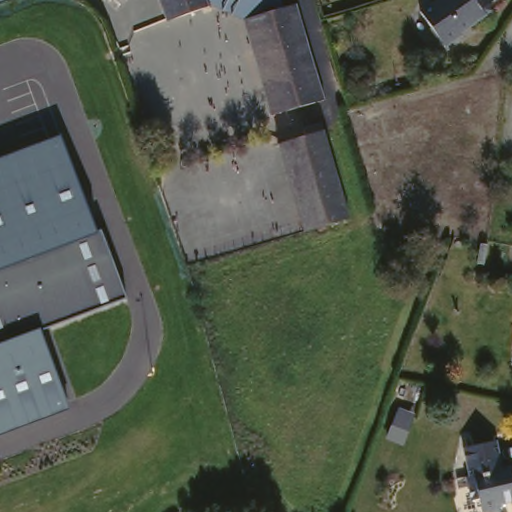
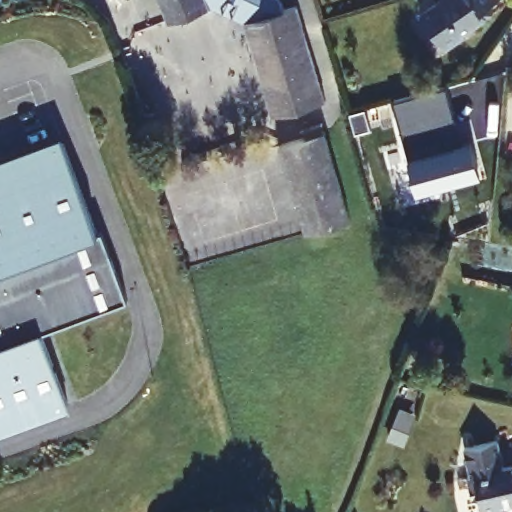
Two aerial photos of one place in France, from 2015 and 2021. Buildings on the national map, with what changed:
unchanged [(283,3),(293,0),(298,0),(326,94),(274,111),(244,15),(212,1),(167,17),(161,0),(282,0),(283,3)]
unchanged [(482,6),(485,12),(462,28),(464,31),(446,44),(421,7),(431,0),(490,0),(482,6)]
new [(416,97),(424,126),(451,118),(459,147),(474,143),(481,169),(466,172),(468,181),(439,189),(437,181),(418,186),(394,102),(416,97)]
unchanged [(355,217),(311,232),(282,143),(308,135),(306,129),(325,122),(355,217)]
unchanged [(64,143),(97,234),(102,232),(128,301),(41,332),(67,404),(0,429),(0,166),(64,143)]
unchanged [(390,436),(400,412),(401,408),(415,413),(413,417),(404,440),(390,436)]
unchanged [(512,495),(498,498),(500,505),(480,508),(476,492),(468,495),(462,471),(467,470),(461,442),(494,435),(500,462),(508,460),(512,476),(512,495)]

